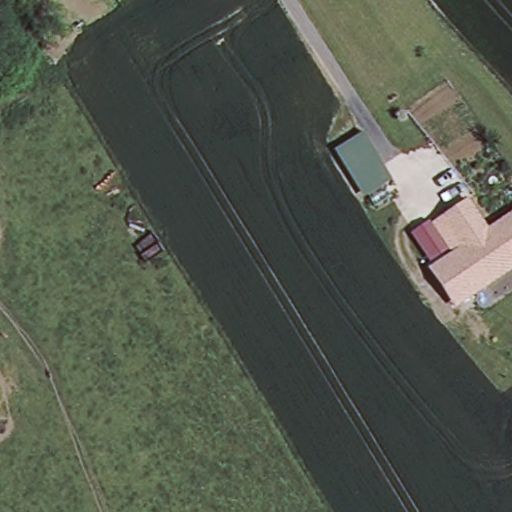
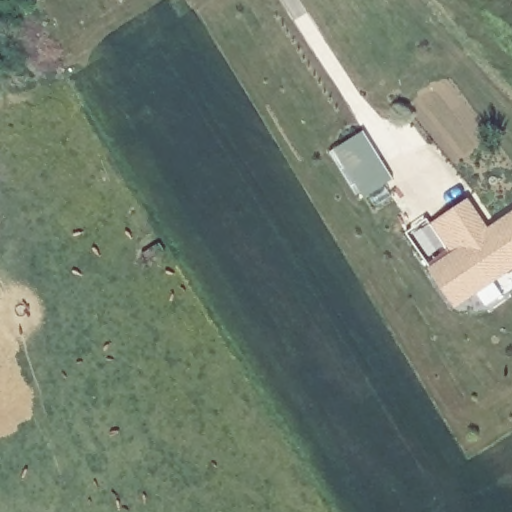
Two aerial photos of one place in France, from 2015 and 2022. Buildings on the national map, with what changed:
unchanged [(364,132),(392,177),(362,195),(336,151),(364,132)]
unchanged [(445,213),(470,197),(491,228),(512,214),(512,268),(491,282),(445,213)]
unchanged [(457,306),(432,267),(417,247),(410,236),(445,213),(491,282),(457,306)]

